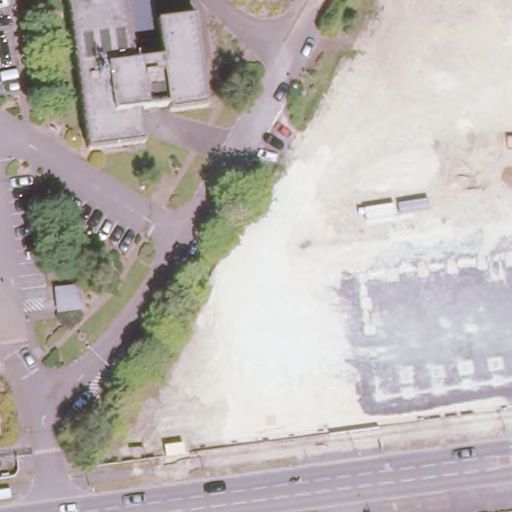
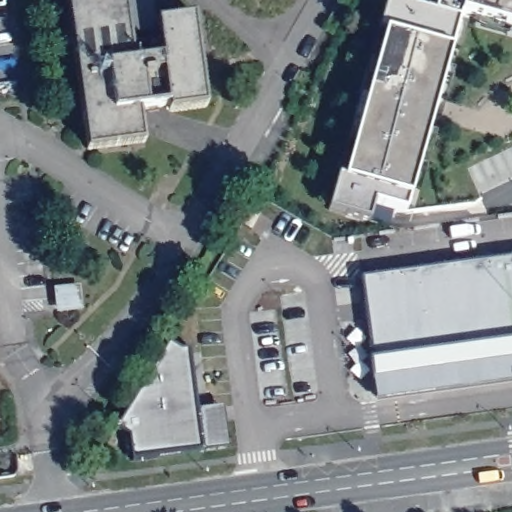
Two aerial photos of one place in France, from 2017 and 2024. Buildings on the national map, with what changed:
unchanged [(159,34),(157,15),(195,11),(207,102),(169,108),(169,103),(142,107),(146,138),(89,146),(69,0),(128,0),(132,37),(159,34)]
unchanged [(272,0),(274,0),(274,1),(272,0)]
new [(382,215),(352,206),(345,226),(302,213),(360,0),(385,0),(402,4),(403,0),(512,0),(512,32),(437,11),(382,215)]
new [(512,378),(362,398),(345,279),(512,256),(512,378)]
new [(168,341),(181,349),(189,348),(204,453),(131,462),(127,437),(114,428),(168,341)]

